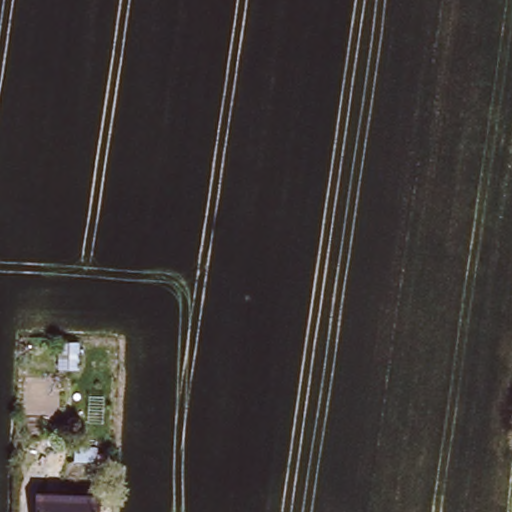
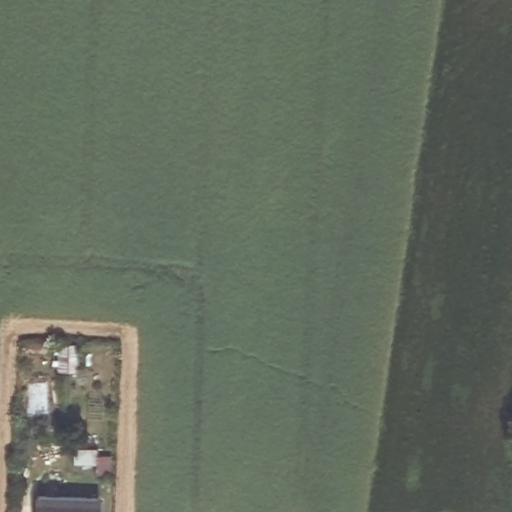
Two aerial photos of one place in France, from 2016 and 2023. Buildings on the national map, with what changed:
unchanged [(78,350),(77,377),(59,376),(59,350),(78,350)]
unchanged [(104,486),(104,477),(83,477),(83,462),(106,463),(106,467),(118,467),(118,477),(118,486),(104,486)]
unchanged [(97,500),(97,512),(35,512),(35,497),(97,500)]

